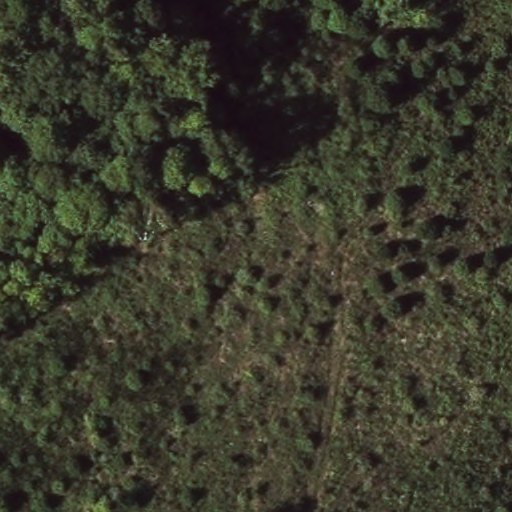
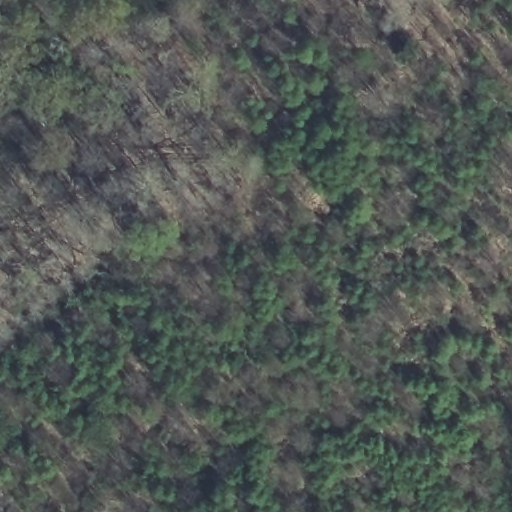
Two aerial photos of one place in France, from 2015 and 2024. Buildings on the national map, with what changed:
unchanged [(0,85),(0,73),(3,85),(0,85)]

